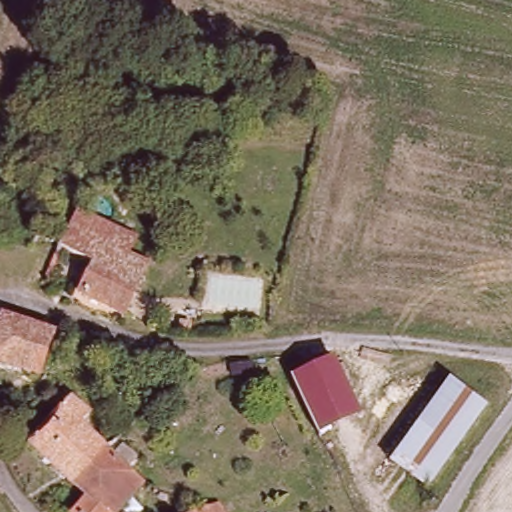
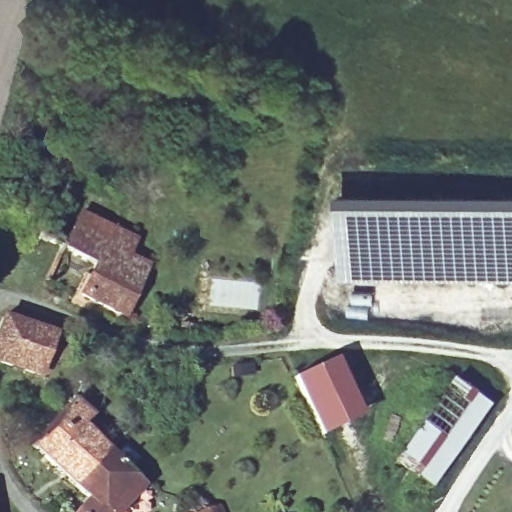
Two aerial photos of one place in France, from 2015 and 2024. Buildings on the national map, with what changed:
new [(340,195),(406,193),(512,195),(512,283),(380,282),(340,280),(340,195)]
unchanged [(134,263),(154,271),(147,291),(162,297),(152,313),(139,306),(127,327),(79,303),(96,270),(62,255),(80,219),(141,245),(134,263)]
new [(352,290),(373,292),(369,321),(347,318),(352,290)]
unchanged [(0,364),(0,329),(2,319),(55,335),(44,378),(0,364)]
unchanged [(362,416),(319,437),(292,379),(335,358),(362,416)]
unchanged [(404,490),(382,475),(450,379),(472,393),(404,490)]
unchanged [(487,404),(418,500),(404,490),(472,393),(487,404)]
unchanged [(85,431),(113,455),(77,497),(32,456),(73,406),(92,421),(85,431)]
unchanged [(89,508),(77,497),(113,455),(147,489),(128,512),(86,512),(89,508)]

